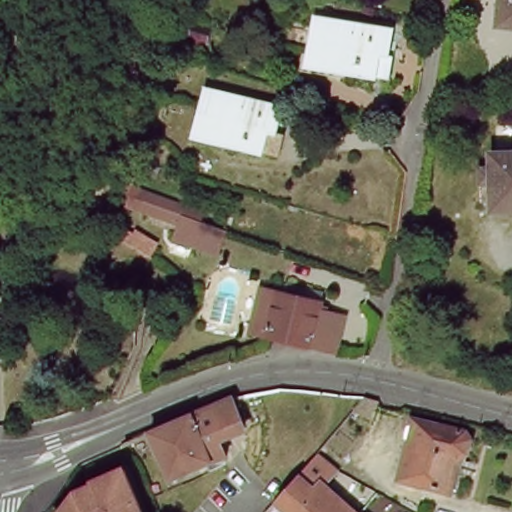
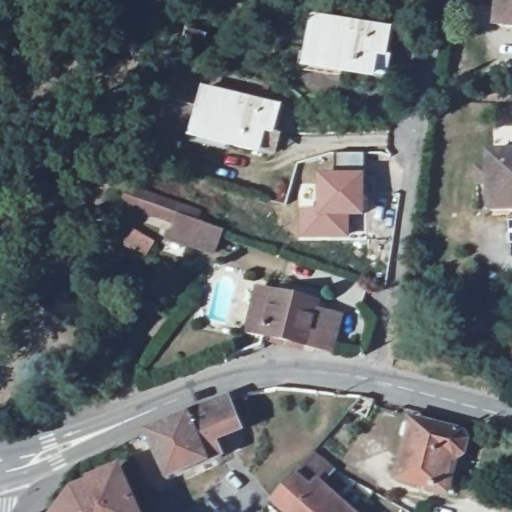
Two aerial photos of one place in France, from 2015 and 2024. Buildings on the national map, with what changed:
unchanged [(512,0),(512,27),(498,25),(501,0),(512,0)]
unchanged [(387,78),(375,76),(323,68),(324,66),(307,63),(314,18),(390,31),(386,55),(390,56),(387,78)]
unchanged [(273,155),(260,152),(210,140),(211,137),(194,133),(205,89),(280,107),(274,132),(278,133),(273,155)]
new [(298,207),(317,207),(316,173),(337,173),(335,153),(364,153),(365,217),(350,217),(349,239),(298,240),(298,207)]
unchanged [(512,207),(496,207),(496,184),(483,184),(483,168),(495,167),(495,153),(512,153),(512,207)]
unchanged [(197,222),(195,230),(153,216),(139,212),(145,194),(160,198),(200,212),(197,222)]
unchanged [(130,233),(132,229),(154,242),(146,256),(115,235),(117,226),(130,233)]
unchanged [(314,347),(272,337),(255,333),(265,291),(323,304),(318,327),(343,333),(338,352),(314,347)]
unchanged [(355,405),(355,404),(362,396),(375,400),(366,417),(350,410),(355,405)]
unchanged [(229,397),(241,427),(216,439),(224,457),(168,481),(147,432),(229,397)]
unchanged [(396,480),(412,419),(463,432),(468,440),(454,495),(396,480)]
unchanged [(313,454),(322,460),(326,464),(335,471),(322,485),(352,512),(285,512),(273,501),(313,454)]
unchanged [(70,487),(86,480),(86,477),(115,464),(137,512),(52,512),(70,487)]

